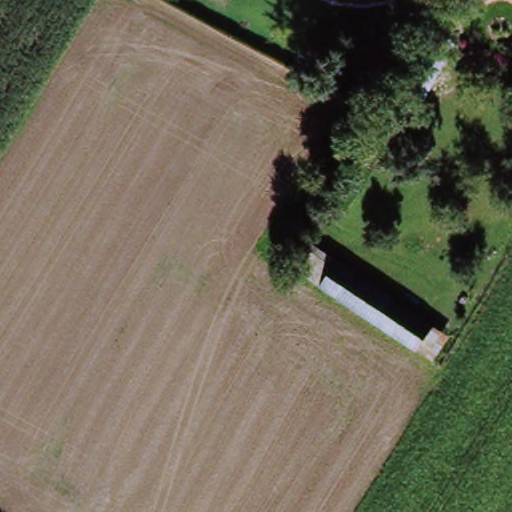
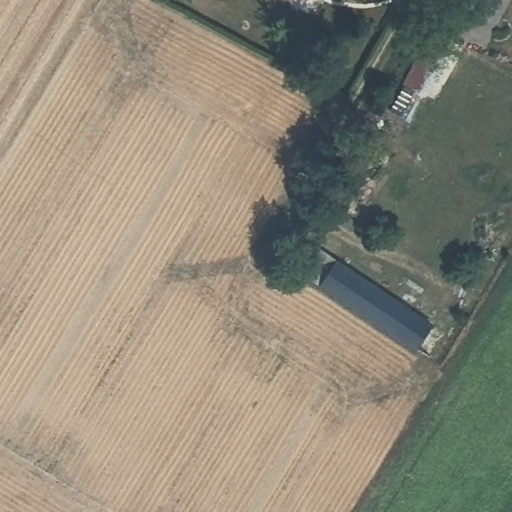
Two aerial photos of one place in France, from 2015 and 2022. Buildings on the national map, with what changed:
unchanged [(452,47),(422,101),(402,89),(430,36),(452,47)]
unchanged [(417,343),(395,328),(322,280),(337,256),(409,305),(431,320),(417,343)]

